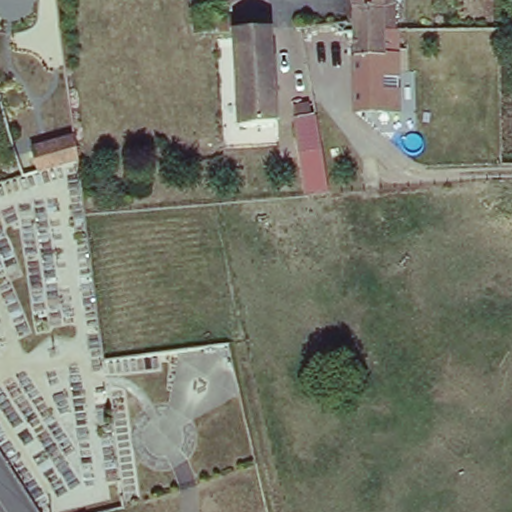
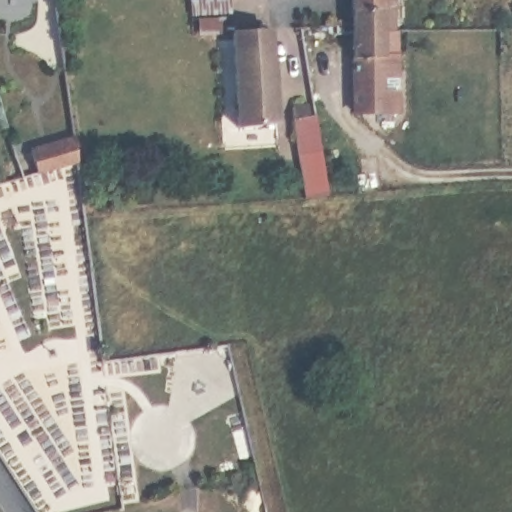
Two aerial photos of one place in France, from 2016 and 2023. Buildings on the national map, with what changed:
unchanged [(193,0),(234,0),(234,13),(194,15),(193,0)]
unchanged [(388,109),(356,113),(354,24),(355,0),(388,0),(388,30),(399,30),(399,54),(388,54),(388,109)]
unchanged [(3,33),(6,55),(0,57),(0,10),(4,33),(3,33)]
unchanged [(194,35),(194,20),(234,18),(235,34),(194,35)]
unchanged [(274,34),(279,129),(240,134),(235,34),(274,34)]
unchanged [(48,169),(40,144),(64,136),(64,128),(59,89),(71,86),(81,159),(48,169)]
unchanged [(290,100),(307,98),(308,113),(317,113),(330,195),(304,199),(290,100)]

